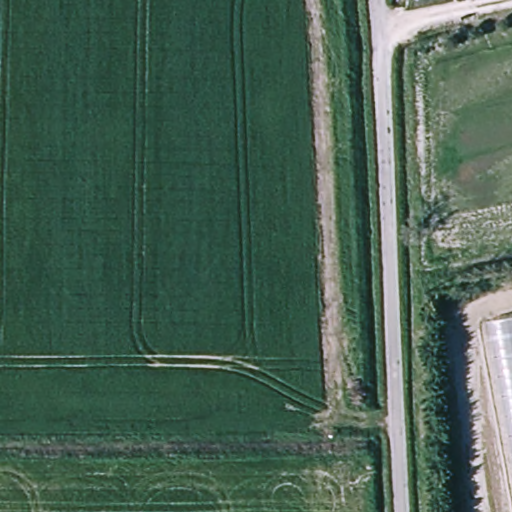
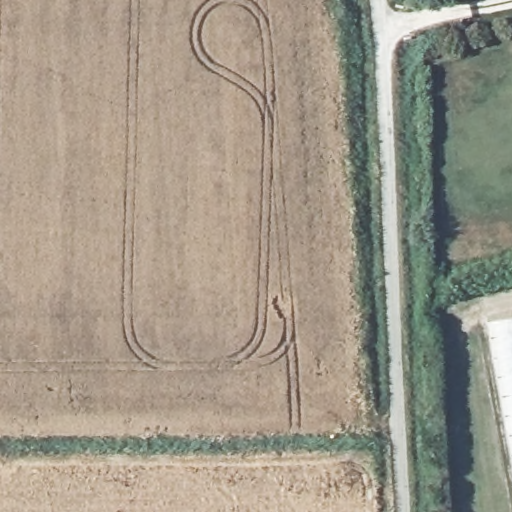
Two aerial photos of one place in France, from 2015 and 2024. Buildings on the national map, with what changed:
unchanged [(512,443),(489,320),(512,316),(512,443)]

